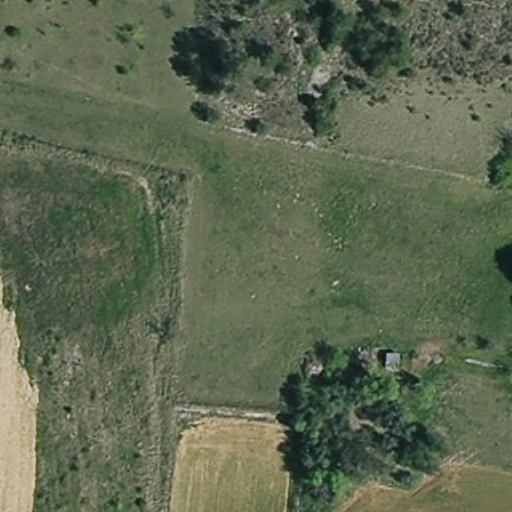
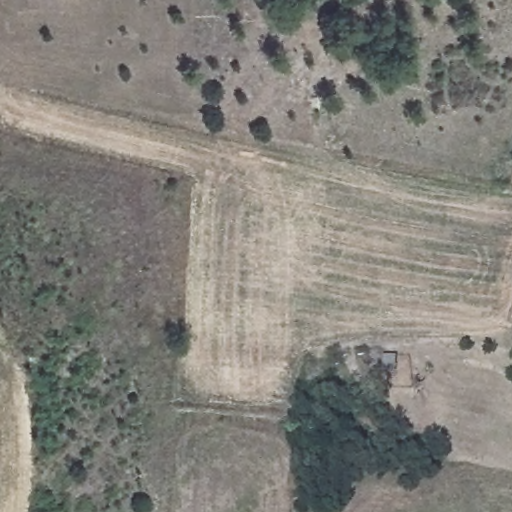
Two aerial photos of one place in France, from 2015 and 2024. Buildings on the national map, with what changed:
[]

